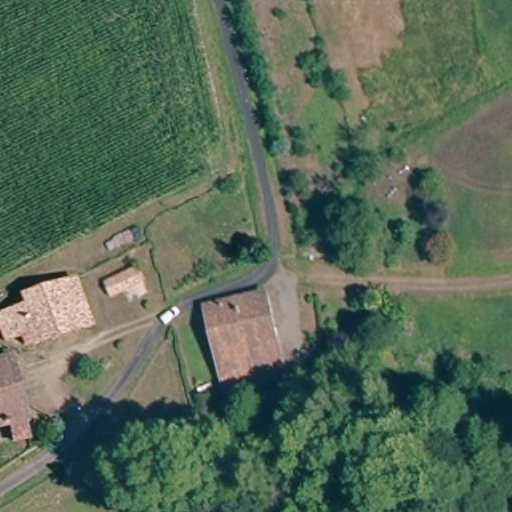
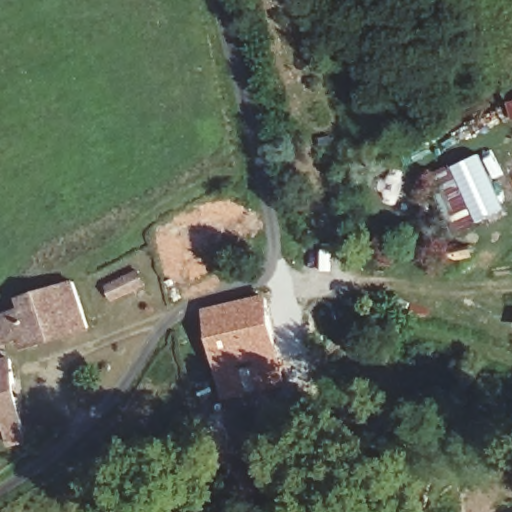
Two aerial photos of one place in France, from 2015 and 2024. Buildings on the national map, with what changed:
new [(455,167),(480,155),(506,210),(480,221),(455,167)]
unchanged [(139,288),(106,304),(98,286),(131,270),(139,288)]
unchanged [(86,328),(27,355),(14,326),(29,320),(24,308),(70,287),(86,328)]
unchanged [(276,396),(270,387),(258,390),(254,376),(240,380),(238,367),(222,369),(210,305),(268,288),(289,394),(276,396)]
unchanged [(0,437),(0,359),(16,356),(31,442),(2,446),(0,437)]

